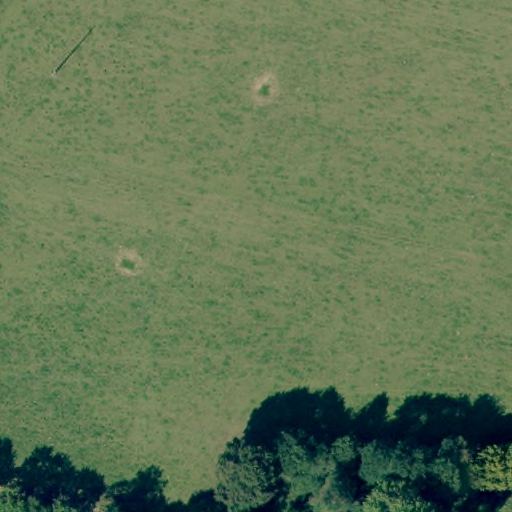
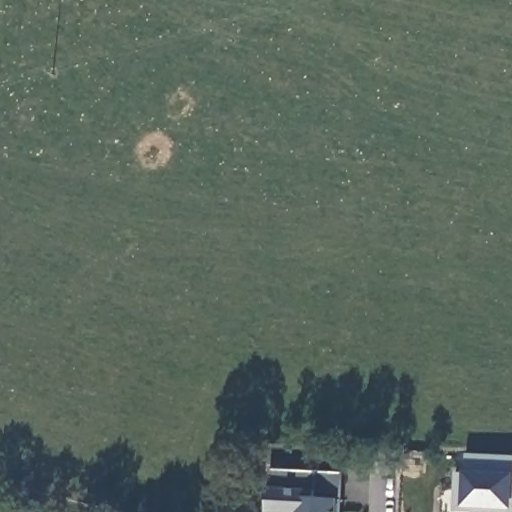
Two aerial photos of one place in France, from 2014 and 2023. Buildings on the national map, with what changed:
new [(455,474),(465,475),(466,455),(512,457),(512,512),(453,512),(455,474)]
new [(341,502),(340,512),(266,512),(268,487),(268,471),(342,475),(341,502)]

